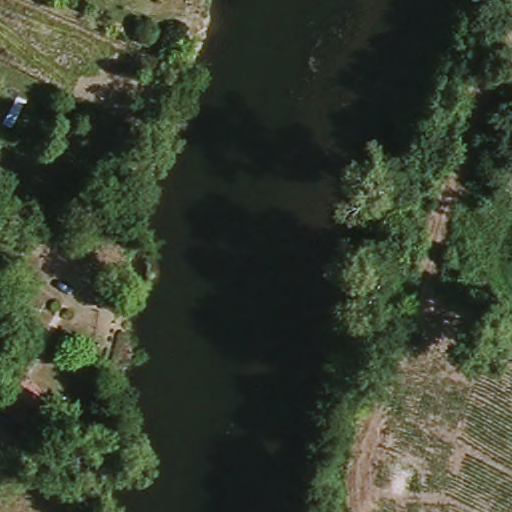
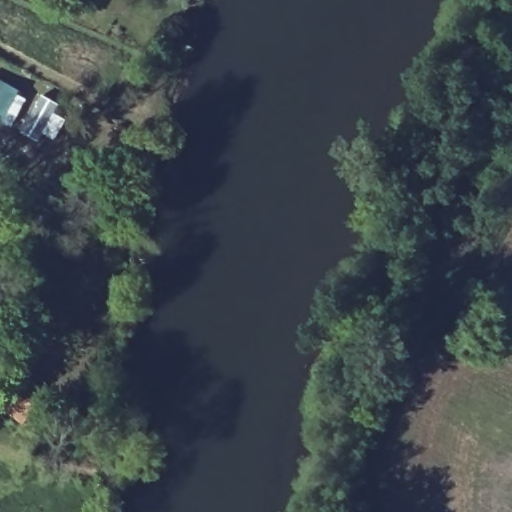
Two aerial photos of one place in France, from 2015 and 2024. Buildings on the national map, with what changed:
unchanged [(3,412),(11,400),(3,395),(13,380),(19,372),(49,392),(43,401),(27,426),(3,412)]

